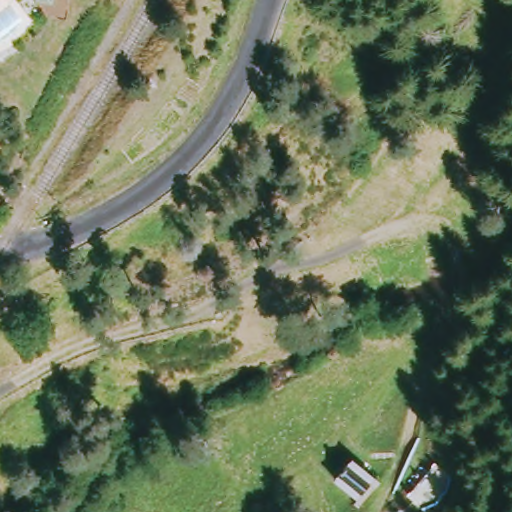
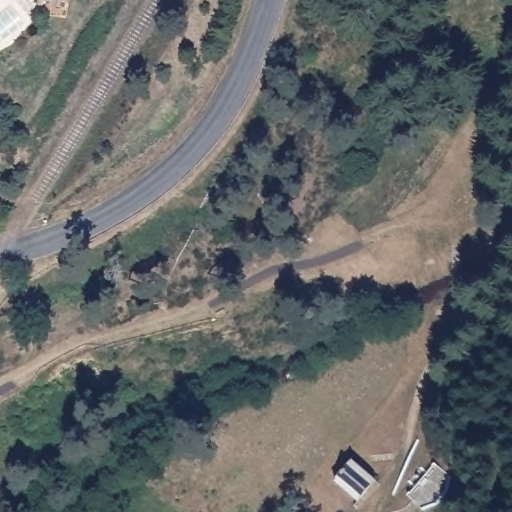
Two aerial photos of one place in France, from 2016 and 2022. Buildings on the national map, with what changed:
unchanged [(330,481),(346,462),(369,483),(354,505),(330,481)]

